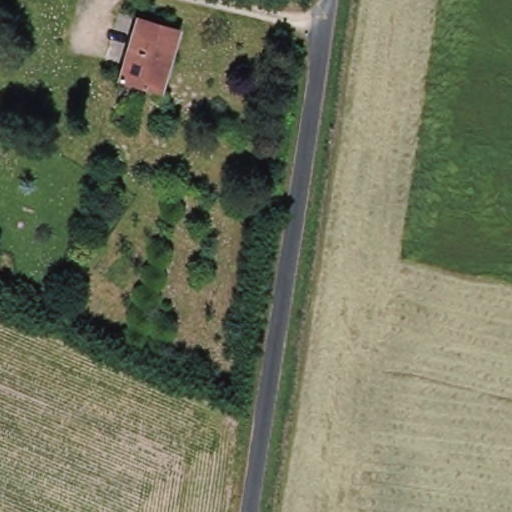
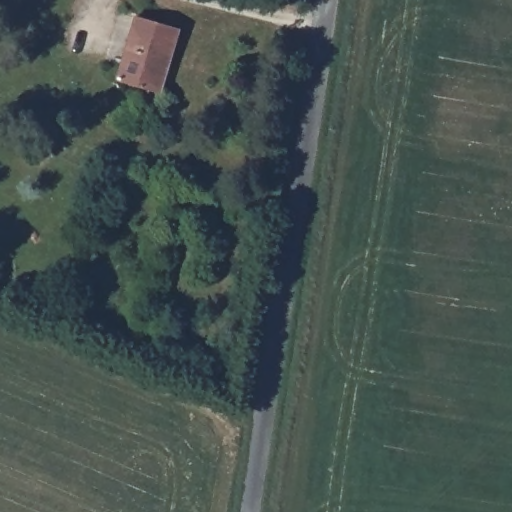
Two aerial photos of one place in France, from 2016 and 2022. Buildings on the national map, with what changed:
unchanged [(163,90),(120,78),(136,17),(179,28),(163,90)]

